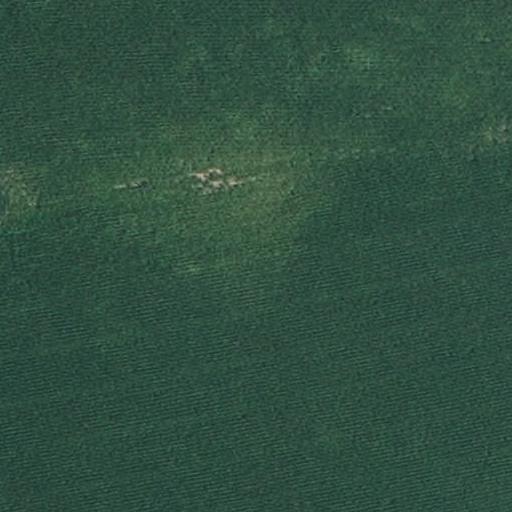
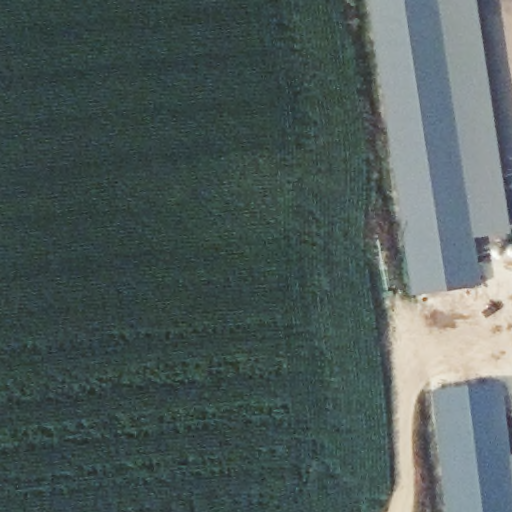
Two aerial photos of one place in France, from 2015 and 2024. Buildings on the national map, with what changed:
new [(481,282),(410,294),(368,0),(439,0),(481,282)]
new [(439,0),(476,0),(510,230),(474,236),(439,0)]
new [(502,384),(512,474),(512,512),(445,512),(431,393),(502,384)]
new [(512,473),(510,455),(512,455),(512,473)]

